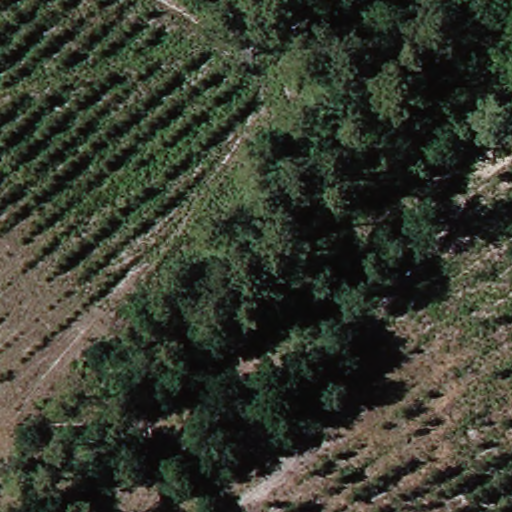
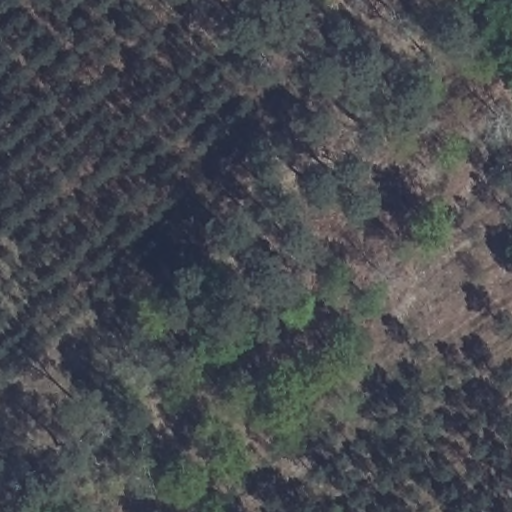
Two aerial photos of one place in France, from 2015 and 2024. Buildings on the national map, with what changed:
[]

